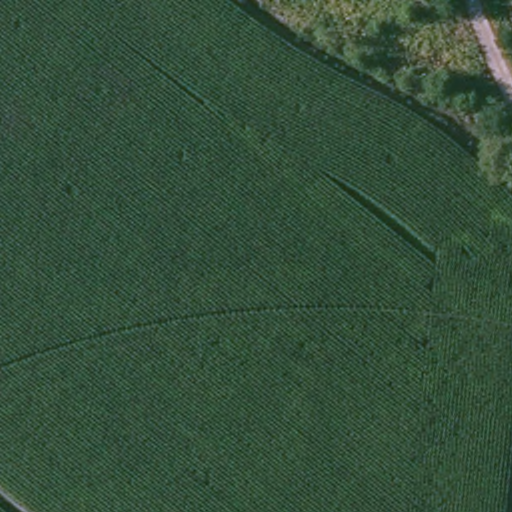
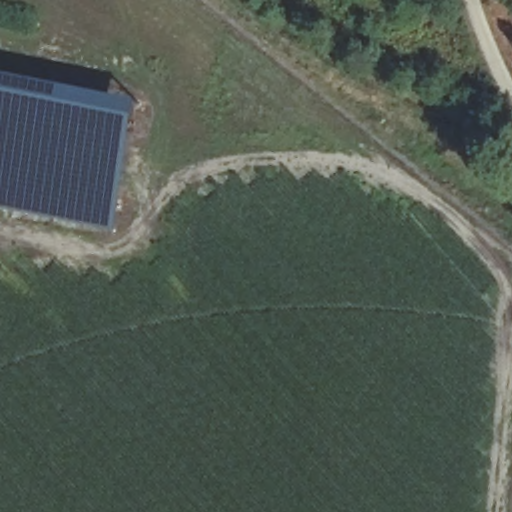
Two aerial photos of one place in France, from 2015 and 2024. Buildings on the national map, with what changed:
new [(68,101),(71,90),(137,104),(112,231),(75,225),(11,211),(0,209),(0,88),(68,101)]

